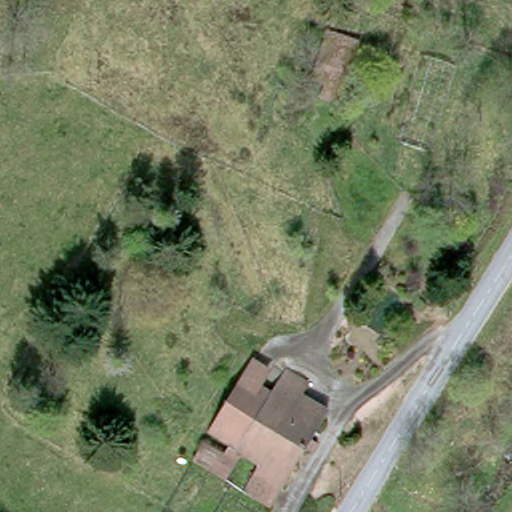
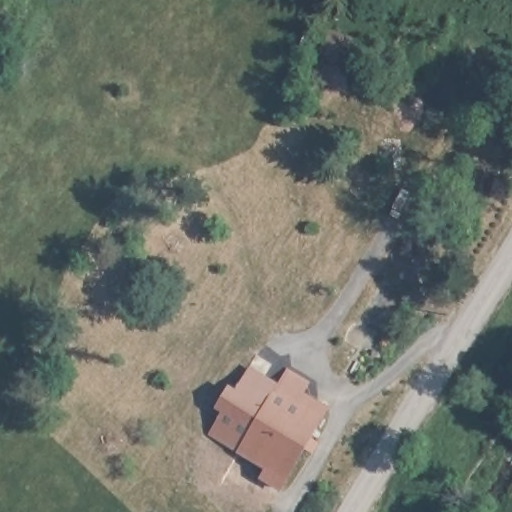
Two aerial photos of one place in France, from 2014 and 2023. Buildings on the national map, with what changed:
unchanged [(272,373),(263,386),(275,394),(232,458),(218,449),(205,440),(257,362),(268,370),(272,373)]
unchanged [(292,370),(314,385),(305,398),(331,416),(313,443),(320,448),(315,457),(307,452),(281,491),(232,458),(275,394),(282,383),(292,370)]

